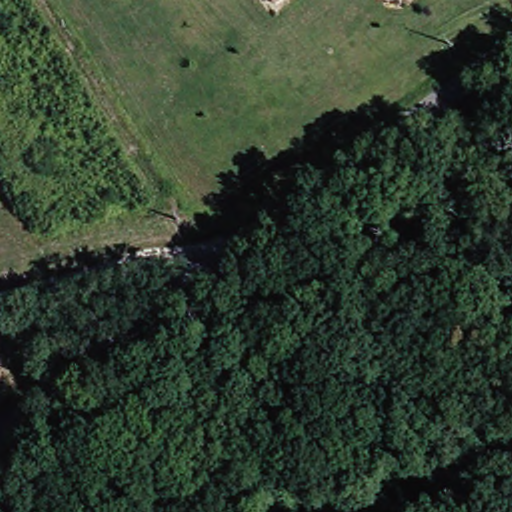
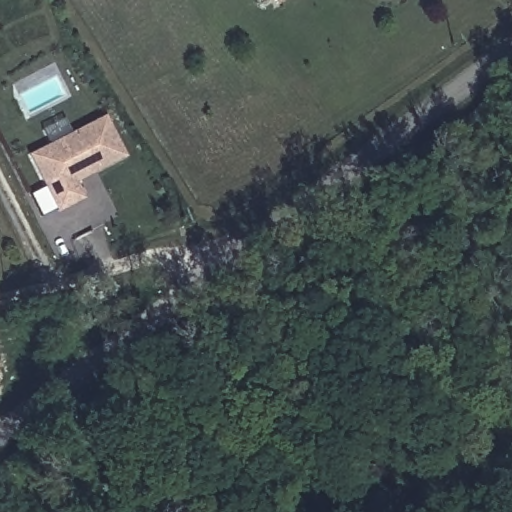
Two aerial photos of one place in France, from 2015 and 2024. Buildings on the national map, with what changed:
new [(81,184),(90,202),(63,216),(31,154),(113,112),(135,156),(102,174),(90,180),(81,184)]

